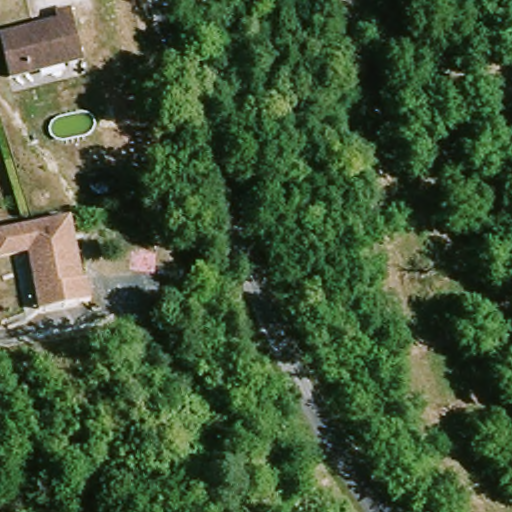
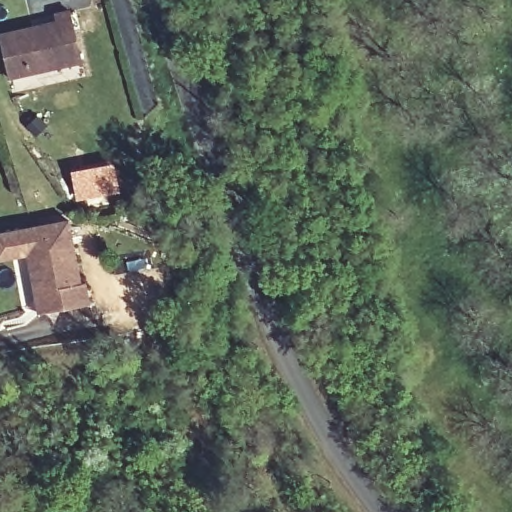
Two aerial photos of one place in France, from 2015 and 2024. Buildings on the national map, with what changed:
unchanged [(57,14),(73,12),(84,67),(12,80),(5,34),(57,23),(57,14)]
new [(114,162),(117,192),(75,202),(70,172),(114,162)]
unchanged [(36,313),(30,254),(0,258),(0,231),(72,222),(74,240),(80,287),(85,286),(87,307),(36,313)]

